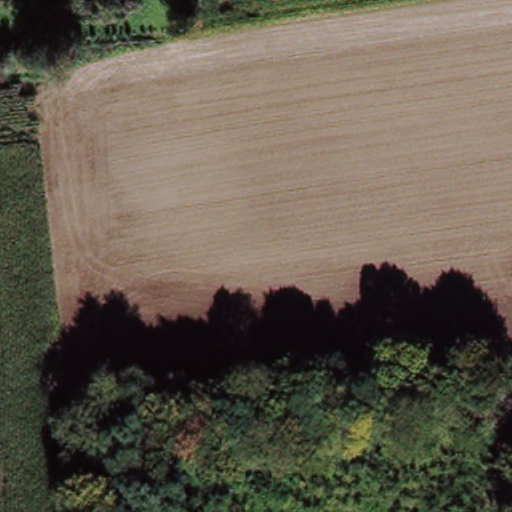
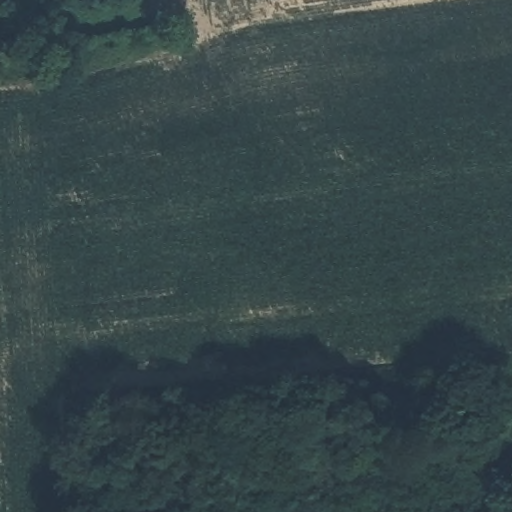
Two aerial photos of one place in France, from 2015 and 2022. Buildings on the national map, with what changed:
[]

